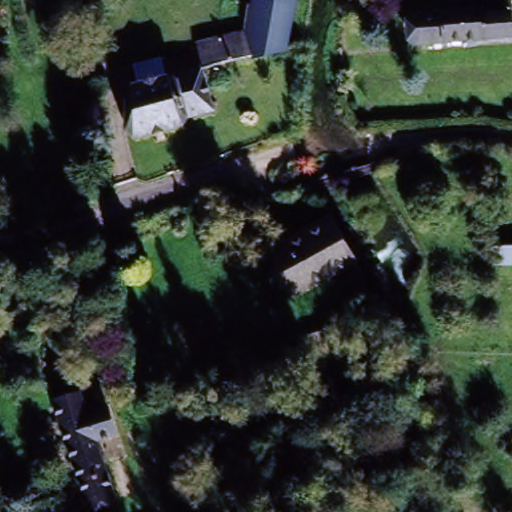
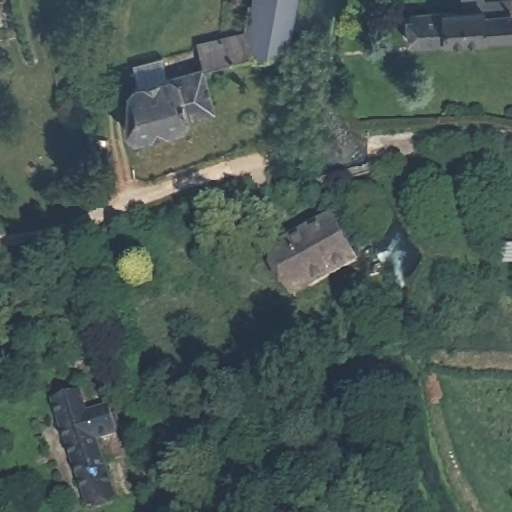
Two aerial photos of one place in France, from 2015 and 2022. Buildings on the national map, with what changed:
unchanged [(223,45),(248,38),(256,0),(299,0),(298,11),(289,54),(228,70),(223,45)]
unchanged [(419,53),(416,25),(442,22),(462,19),(479,17),(479,9),(496,7),(508,6),(509,20),(511,44),(434,52),(419,53)]
unchanged [(212,74),(214,83),(206,85),(216,116),(183,125),(185,132),(139,145),(127,136),(129,99),(136,93),(212,74)]
unchanged [(504,252),(504,215),(512,215),(512,270),(492,273),(494,252),(504,252)]
unchanged [(276,255),(321,229),(324,236),(339,230),(350,251),(336,257),(344,270),(299,295),(276,255)]
unchanged [(308,338),(341,329),(349,350),(312,360),(308,338)]
unchanged [(88,506),(62,423),(86,416),(113,498),(88,506)]

